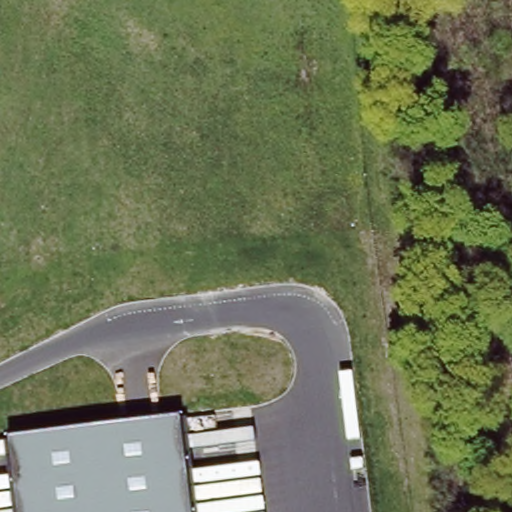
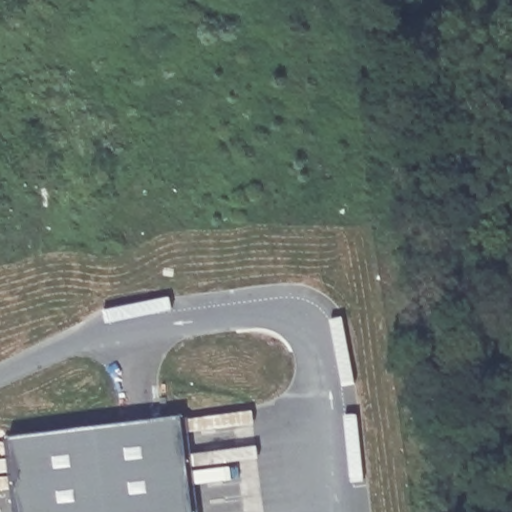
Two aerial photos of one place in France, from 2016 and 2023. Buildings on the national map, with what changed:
unchanged [(8,437),(182,416),(194,512),(18,512),(8,437)]

